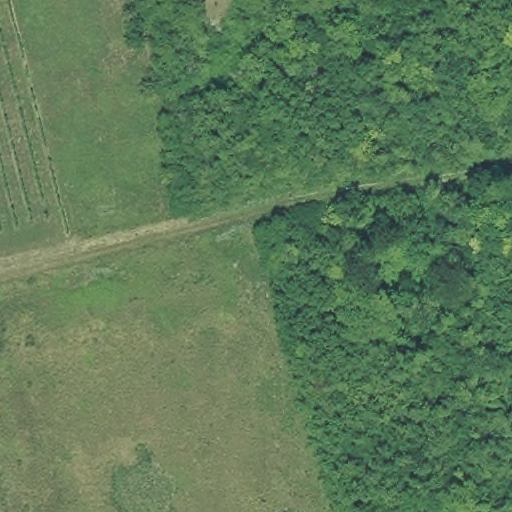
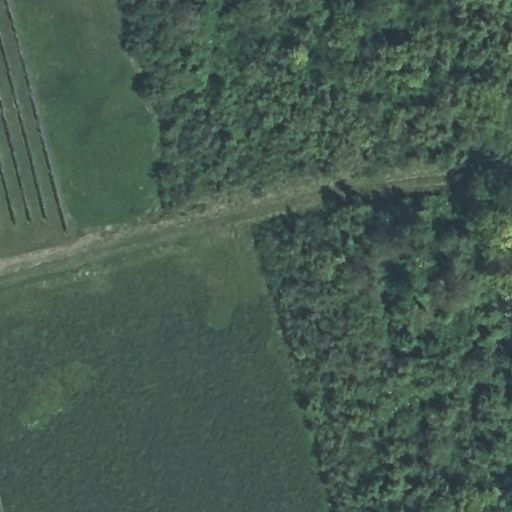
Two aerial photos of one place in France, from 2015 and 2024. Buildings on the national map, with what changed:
[]

